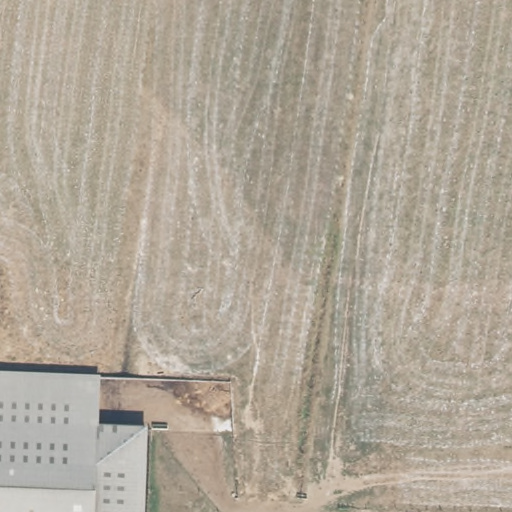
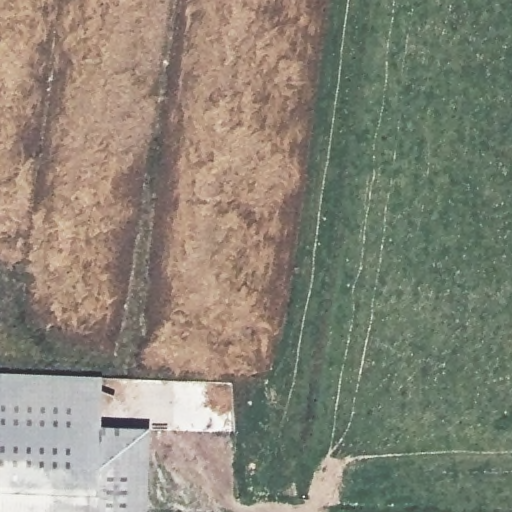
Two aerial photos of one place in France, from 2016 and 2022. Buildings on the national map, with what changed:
unchanged [(100,377),(100,426),(155,429),(151,512),(0,512),(0,483),(2,424),(0,423),(0,372),(100,377)]
unchanged [(0,483),(0,423),(2,424),(0,483)]

